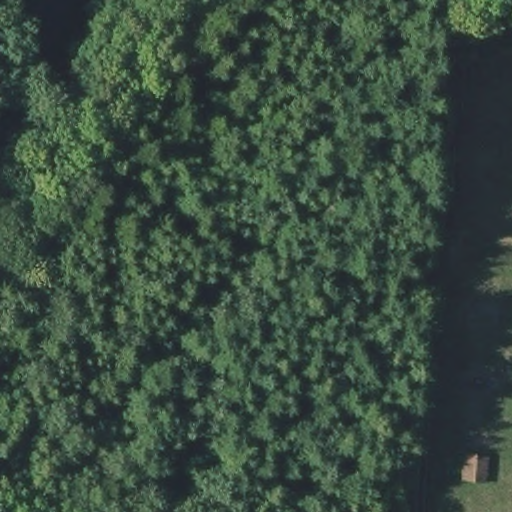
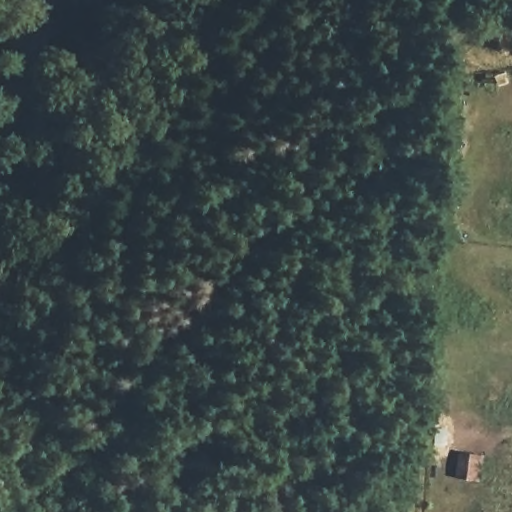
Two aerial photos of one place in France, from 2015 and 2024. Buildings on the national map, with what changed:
unchanged [(479,456),(478,481),(454,480),(456,455),(479,456)]

